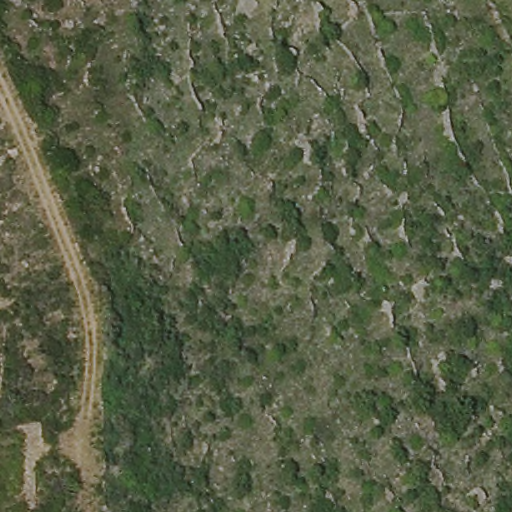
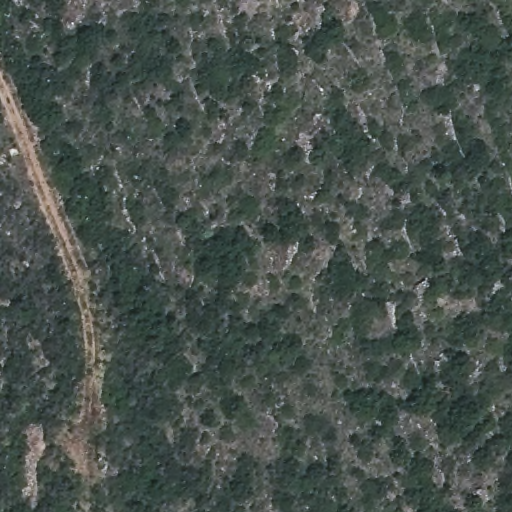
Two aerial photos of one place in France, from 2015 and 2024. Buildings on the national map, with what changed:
[]

